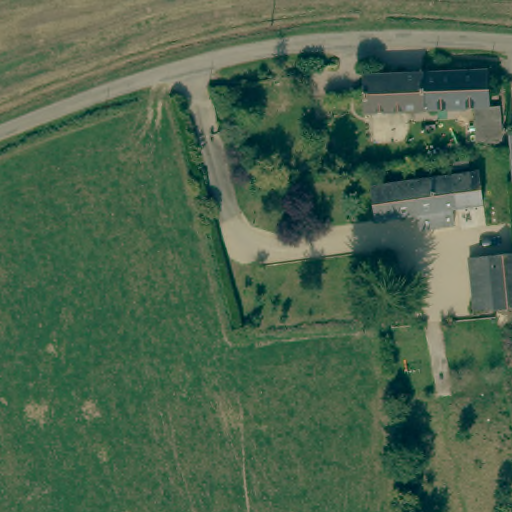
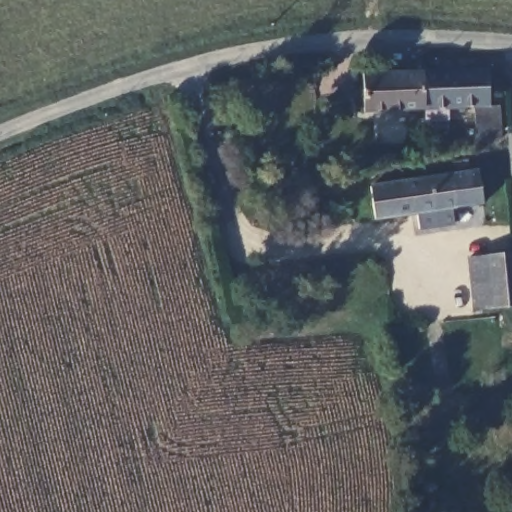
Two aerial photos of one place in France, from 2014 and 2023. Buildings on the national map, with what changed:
unchanged [(470,107),(365,108),(364,76),(364,70),(487,69),(487,85),(487,106),(499,106),(499,139),(472,140),(470,107)]
unchanged [(503,142),(503,139),(503,136),(512,136),(512,183),(507,183),(503,142)]
unchanged [(413,226),(412,212),(373,217),(369,184),(474,172),(477,204),(447,208),(448,222),(413,226)]
unchanged [(488,257),(490,257),(512,255),(512,308),(497,309),(492,309),(488,257)]
unchanged [(471,311),(466,259),(488,257),(492,309),(471,311)]

